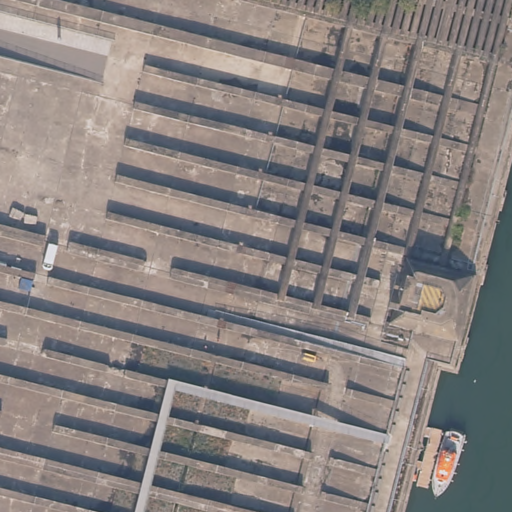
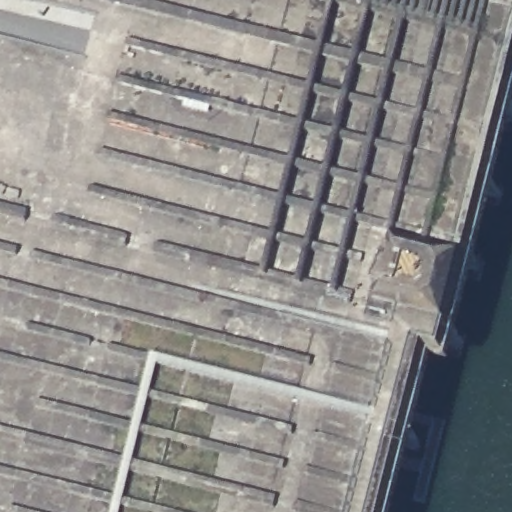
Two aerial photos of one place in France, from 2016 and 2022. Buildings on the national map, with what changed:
unchanged [(512,0),(512,114),(405,512),(0,512),(0,0),(512,0)]

